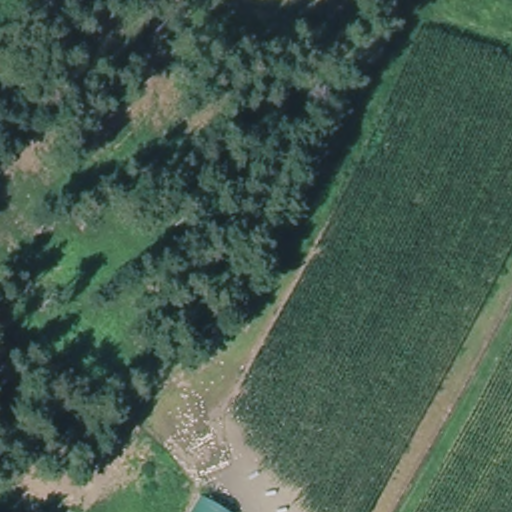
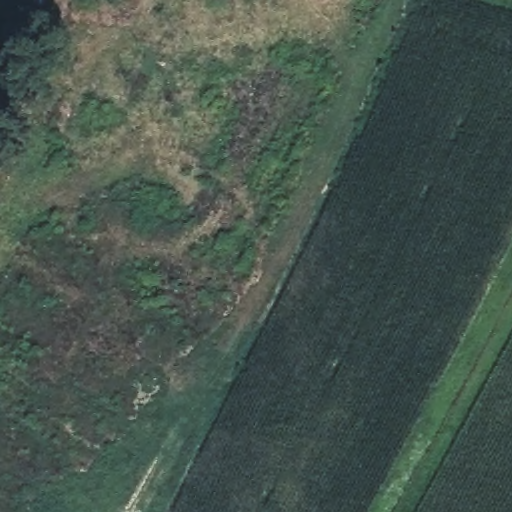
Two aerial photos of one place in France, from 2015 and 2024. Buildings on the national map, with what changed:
[]

